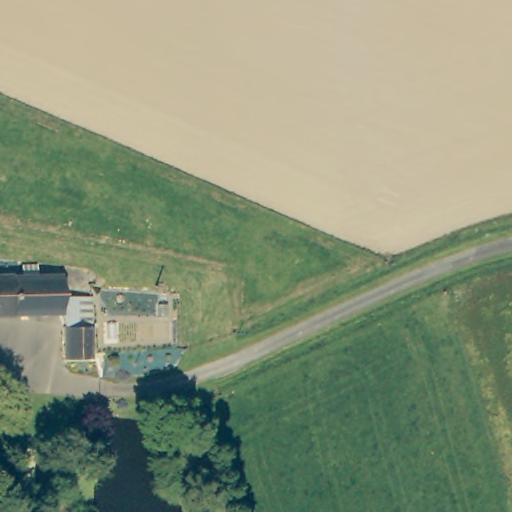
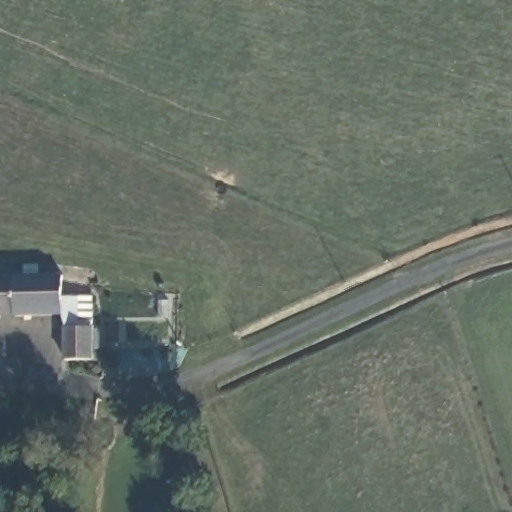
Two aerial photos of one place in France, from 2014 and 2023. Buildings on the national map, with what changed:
unchanged [(63,273),(63,298),(93,296),(93,315),(93,358),(64,359),(63,312),(0,313),(0,274),(63,273)]

